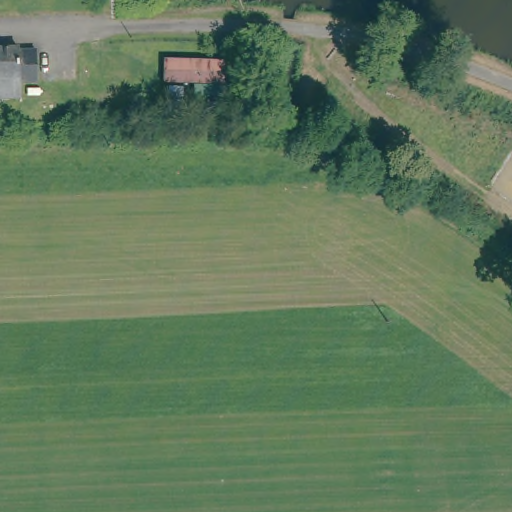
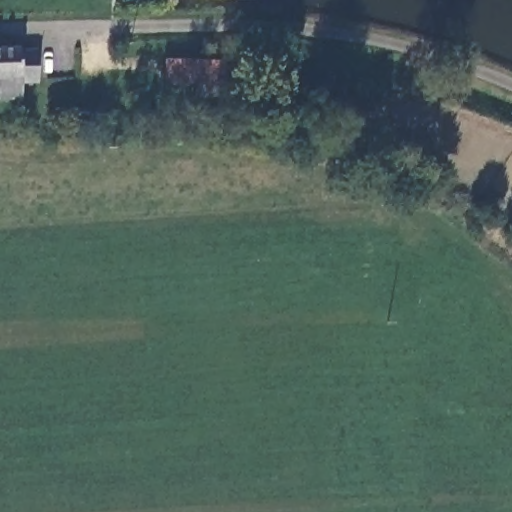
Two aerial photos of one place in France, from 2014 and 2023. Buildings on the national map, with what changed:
unchanged [(31,70),(13,71),(13,98),(0,98),(0,45),(30,44),(31,70)]

